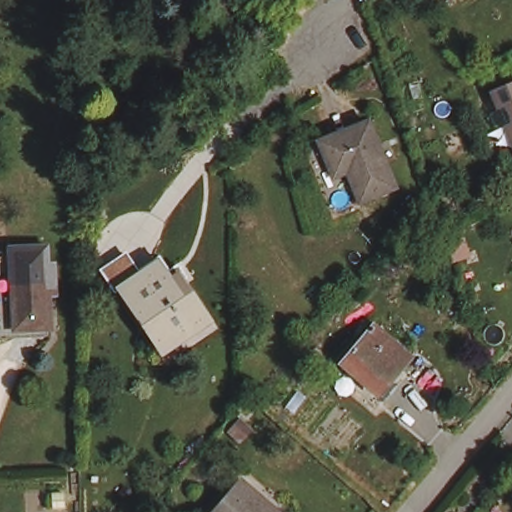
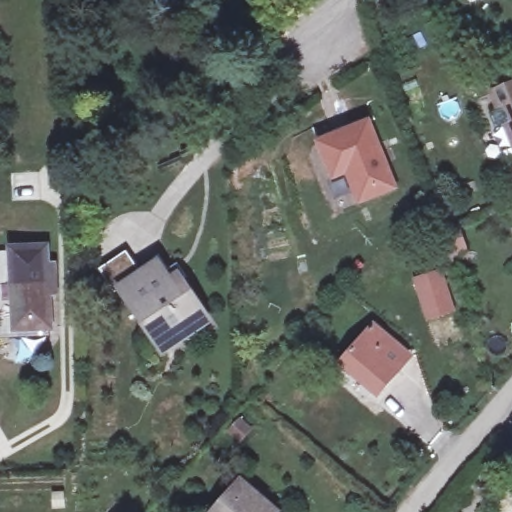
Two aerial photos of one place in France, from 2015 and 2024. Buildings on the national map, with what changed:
unchanged [(507,132),(502,118),(495,101),(512,94),(512,142),(507,132)]
unchanged [(360,125),(385,191),(350,207),(337,176),(325,181),(311,146),(360,125)]
unchanged [(42,257),(48,276),(51,287),(45,289),(55,321),(20,332),(0,267),(0,250),(31,241),(37,259),(42,257)]
unchanged [(155,264),(172,288),(180,281),(205,319),(159,353),(117,292),(155,264)]
new [(436,270),(449,308),(425,317),(412,278),(436,270)]
unchanged [(407,357),(374,392),(342,363),(375,328),(407,357)]
unchanged [(271,512),(214,512),(239,484),(271,512)]

